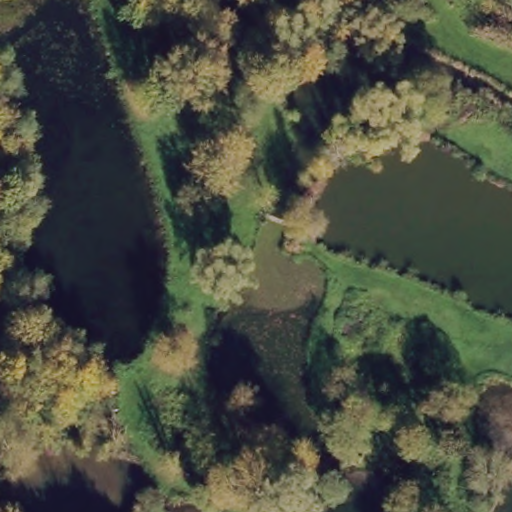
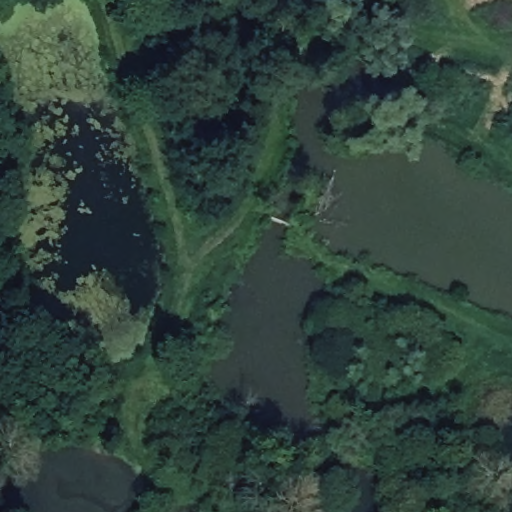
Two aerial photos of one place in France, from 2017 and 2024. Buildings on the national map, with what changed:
[]

